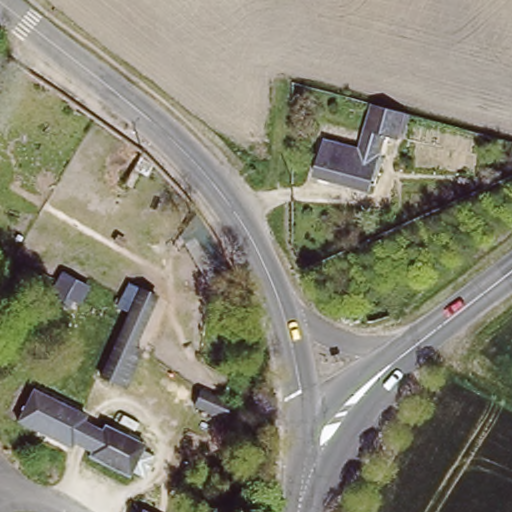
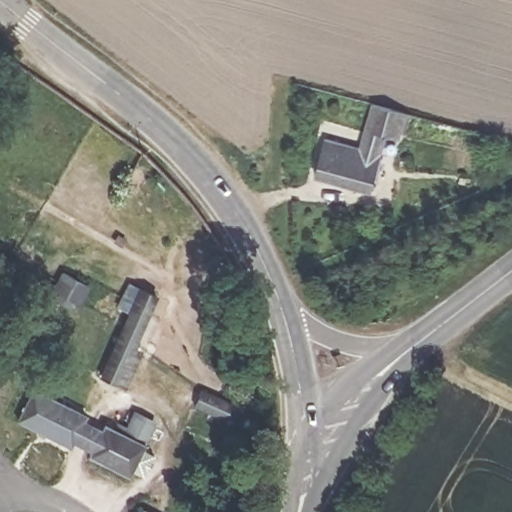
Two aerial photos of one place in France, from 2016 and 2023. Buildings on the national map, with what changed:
unchanged [(403,112),(397,137),(383,134),(368,191),(312,176),(322,139),(357,147),(368,103),(403,112)]
unchanged [(236,282),(213,293),(183,241),(204,227),(236,282)]
unchanged [(72,277),(87,285),(77,305),(62,297),(72,277)]
unchanged [(118,387),(95,376),(109,342),(122,312),(112,307),(122,283),(133,288),(150,296),(127,348),(126,350),(134,353),(118,387)]
unchanged [(88,450),(72,442),(70,447),(16,421),(33,387),(85,413),(83,420),(99,428),(88,450)]
unchanged [(230,403),(222,421),(192,407),(200,390),(230,403)]
unchanged [(143,471),(132,465),(128,471),(88,450),(103,419),(144,440),(142,443),(154,449),(143,471)]
unchanged [(144,512),(146,508),(153,512),(144,512)]

